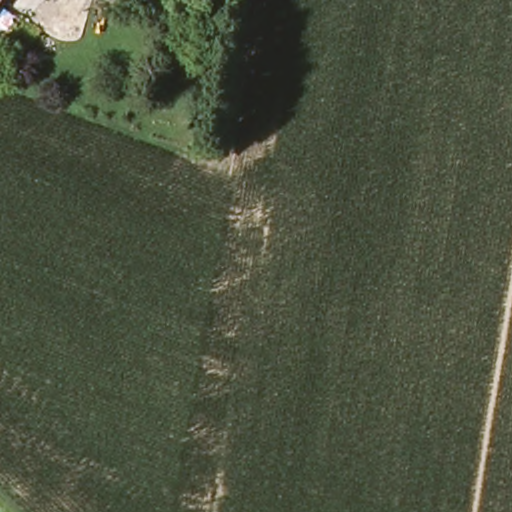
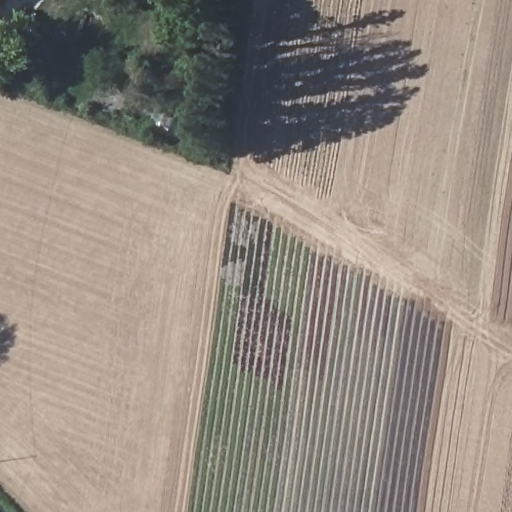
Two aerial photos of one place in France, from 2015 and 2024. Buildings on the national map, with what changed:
unchanged [(9,0),(0,13),(0,0),(9,0)]

